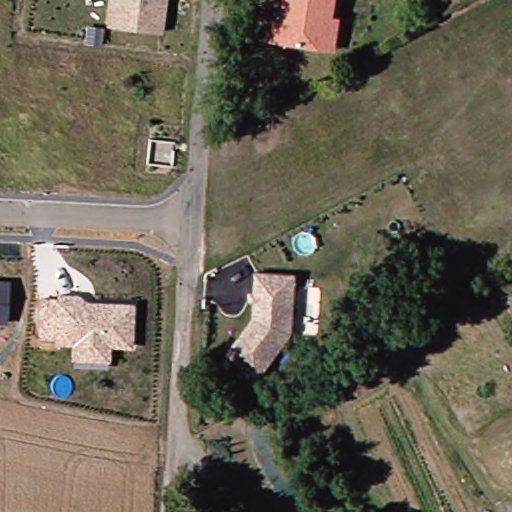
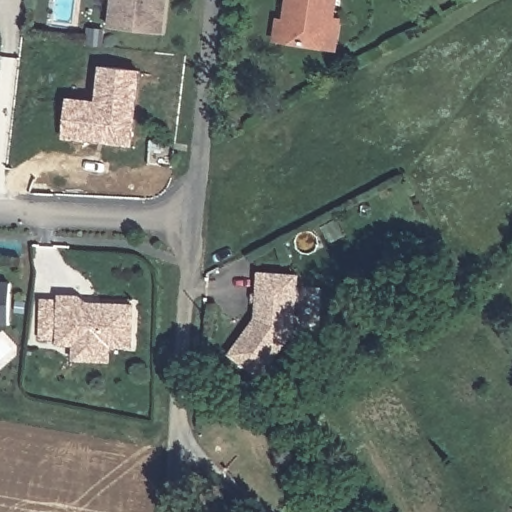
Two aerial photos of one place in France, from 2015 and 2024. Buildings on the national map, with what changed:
unchanged [(162,33),(110,26),(113,0),(166,0),(162,33)]
unchanged [(323,48),(285,42),(275,40),(278,19),(284,20),(286,11),(287,0),(337,0),(334,19),(339,20),(335,50),(323,48)]
new [(67,95),(96,100),(100,64),(142,69),(132,146),(62,137),(67,95)]
unchanged [(300,271),(297,328),(263,375),(231,351),(257,315),(260,269),(300,271)]
unchanged [(8,325),(0,326),(0,280),(9,280),(8,325)]
unchanged [(75,344),(59,343),(60,296),(77,296),(87,303),(134,305),(132,346),(110,345),(110,360),(74,359),(75,344)]

